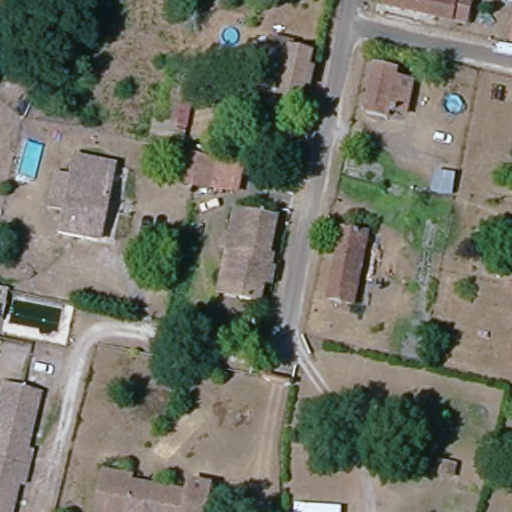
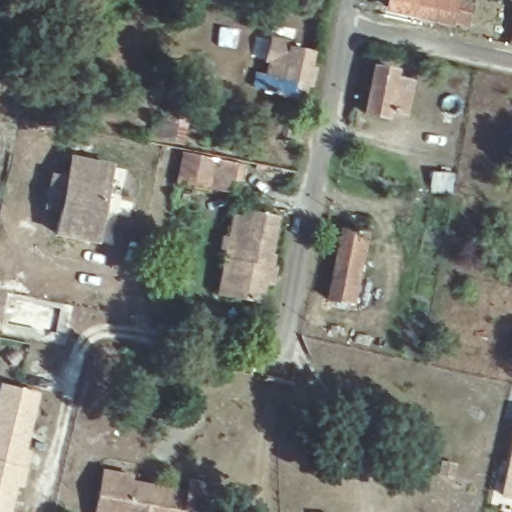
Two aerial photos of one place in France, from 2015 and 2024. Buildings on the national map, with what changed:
unchanged [(383,5),(385,0),(465,0),(461,24),(383,5)]
unchanged [(263,91),(273,46),(310,54),(301,100),(263,91)]
unchanged [(391,116),(389,123),(365,120),(366,110),(357,107),(362,82),(374,85),(376,74),(397,77),(397,86),(412,89),(407,121),(391,116)]
unchanged [(185,148),(159,142),(170,79),(196,84),(185,148)]
unchanged [(291,148),(286,170),(257,165),(262,140),(291,148)]
unchanged [(215,194),(197,190),(180,186),(186,155),(204,159),(220,162),(215,194)]
unchanged [(115,165),(102,244),(61,234),(65,209),(48,205),(54,170),(72,173),(75,156),(115,165)]
unchanged [(226,258),(236,208),(263,215),(245,299),(234,298),(217,295),(226,258)]
unchanged [(275,285),(267,283),(263,303),(245,299),(263,215),(280,217),(273,250),(281,251),(275,285)]
unchanged [(325,300),(347,225),(372,230),(351,305),(325,300)]
unchanged [(11,325),(0,323),(0,295),(16,298),(11,325)]
unchanged [(2,383),(19,387),(39,390),(27,449),(32,450),(26,485),(20,482),(14,512),(0,512),(0,397),(2,383)]
new [(512,501),(500,498),(512,441),(512,501)]
unchanged [(130,482),(130,487),(186,498),(189,488),(212,493),(208,512),(94,512),(102,476),(130,482)]

